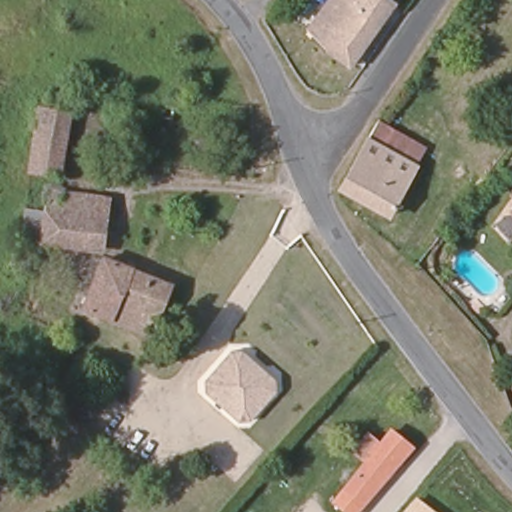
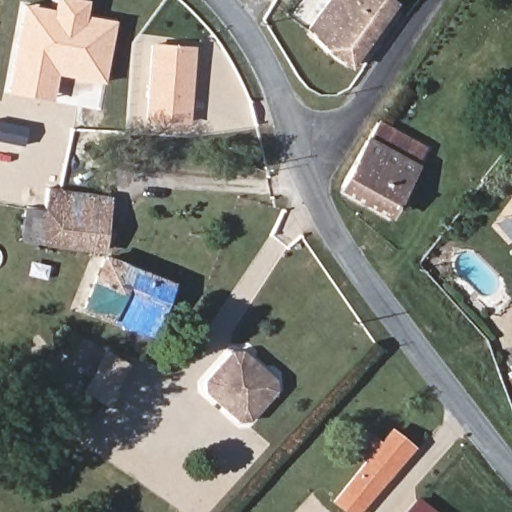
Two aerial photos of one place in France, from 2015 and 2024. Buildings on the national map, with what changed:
new [(58,75),(51,101),(6,92),(23,4),(53,9),(54,0),(87,0),(85,16),(115,20),(104,84),(58,75)]
unchanged [(353,0),(384,25),(356,66),(334,47),(341,41),(315,21),(311,28),(302,20),(318,0),(353,0)]
unchanged [(384,25),(353,0),(393,0),(399,4),(384,25)]
demolished [(229,69),(225,81),(211,58),(205,51),(233,19),(253,39),(229,69)]
new [(194,46),(189,124),(144,119),(150,43),(194,46)]
demolished [(217,105),(188,93),(202,54),(205,51),(211,58),(225,81),(217,105)]
unchanged [(63,174),(32,170),(42,104),(74,110),(63,174)]
unchanged [(345,180),(372,134),(420,161),(395,209),(345,180)]
unchanged [(101,246),(41,240),(49,185),(106,191),(101,246)]
unchanged [(164,311),(158,329),(81,303),(101,259),(104,253),(111,256),(173,283),(164,311)]
unchanged [(272,381),(275,392),(248,423),(237,424),(202,395),(202,384),(228,354),(239,353),(272,381)]
unchanged [(355,512),(350,512),(336,499),(360,473),(369,462),(356,448),(359,443),(372,429),(382,438),(393,425),(412,444),(355,512)]
unchanged [(402,483),(440,512),(377,512),(402,483)]

